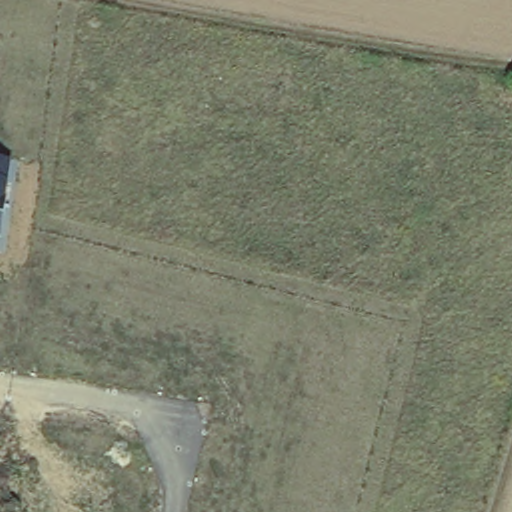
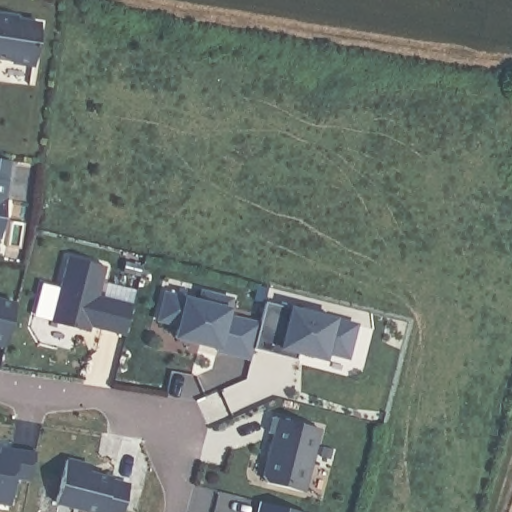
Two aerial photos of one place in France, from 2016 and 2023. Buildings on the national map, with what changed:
new [(11,62),(0,60),(0,17),(16,20),(16,22),(40,26),(34,68),(11,64),(11,62)]
unchanged [(0,232),(0,159),(10,161),(0,232)]
new [(97,334),(99,329),(91,327),(89,337),(51,328),(67,262),(105,272),(97,301),(131,309),(124,340),(97,334)]
new [(200,348),(174,341),(177,329),(157,324),(165,297),(199,305),(201,295),(230,303),(226,320),(259,328),(250,363),(216,355),(218,349),(217,352),(200,348)]
new [(5,349),(0,348),(0,303),(15,307),(5,349)]
new [(252,354),(265,307),(356,330),(348,360),(344,363),(325,358),(324,365),(281,354),(297,358),(296,365),(279,361),(252,354)]
new [(267,486),(263,479),(275,437),(268,436),(272,420),(320,432),(303,495),(267,486)]
new [(36,455),(30,484),(14,481),(9,508),(0,506),(0,450),(0,448),(36,455)]
new [(89,476),(112,482),(111,483),(130,488),(124,512),(80,512),(56,506),(67,463),(90,469),(89,476)]
new [(259,512),(261,504),(292,512),(259,512)]

